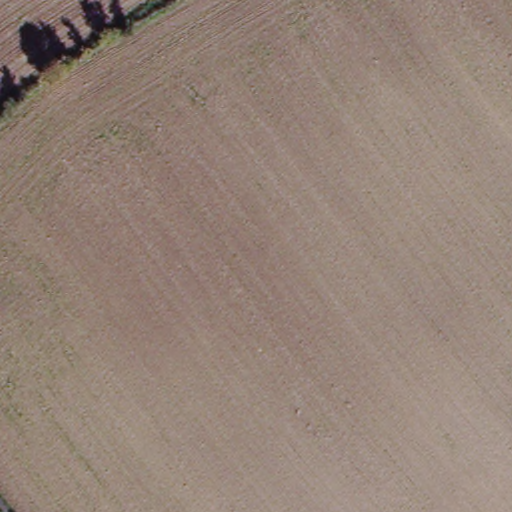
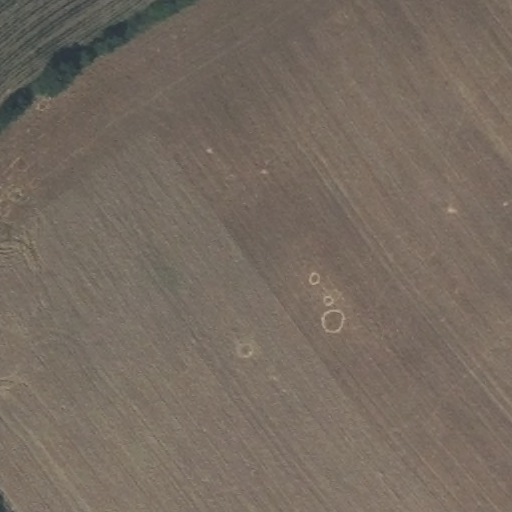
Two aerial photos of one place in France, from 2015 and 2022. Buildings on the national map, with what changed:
[]

